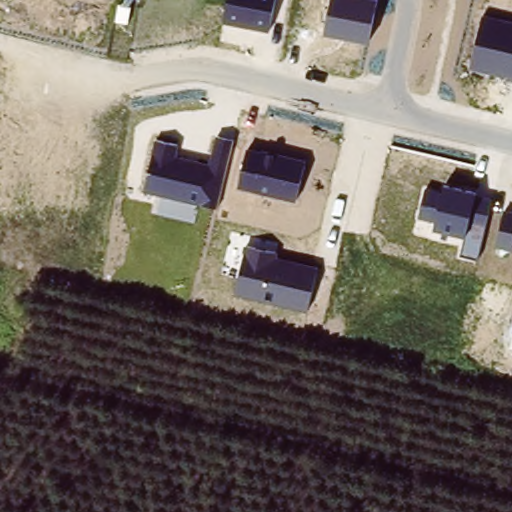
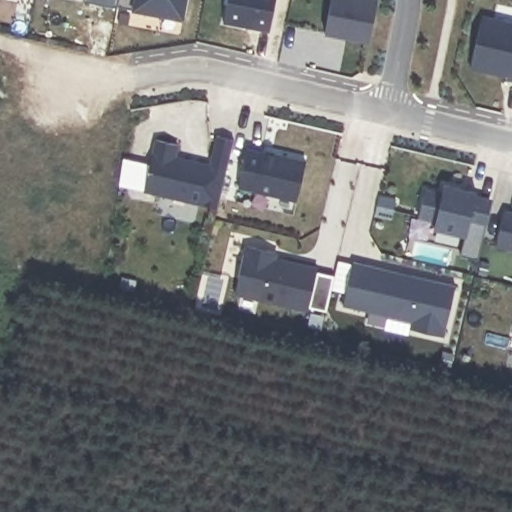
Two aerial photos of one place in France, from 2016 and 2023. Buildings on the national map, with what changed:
new [(116,7),(117,0),(187,0),(183,20),(131,10),(116,7)]
unchanged [(226,0),(276,0),(269,32),(221,24),(226,0)]
unchanged [(330,0),(378,0),(371,44),(324,35),(330,0)]
unchanged [(512,81),(468,69),(483,14),(512,21),(512,81)]
unchanged [(143,191),(154,138),(181,144),(178,156),(208,163),(216,134),(235,139),(218,209),(143,191)]
unchanged [(236,187),(246,146),(306,157),(296,203),(236,187)]
unchanged [(459,255),(466,238),(433,230),(434,222),(418,217),(425,186),(438,188),(446,184),(494,197),(479,260),(459,255)]
unchanged [(505,209),(512,210),(512,250),(494,245),(505,209)]
unchanged [(309,314),(234,296),(245,245),(279,251),(279,257),(319,266),(309,314)]
new [(444,336),(408,328),(409,322),(386,316),(384,327),(366,323),(369,311),(343,305),(353,260),(456,285),(444,336)]

